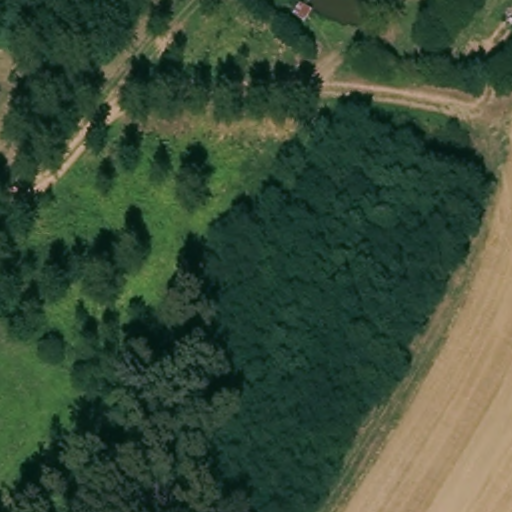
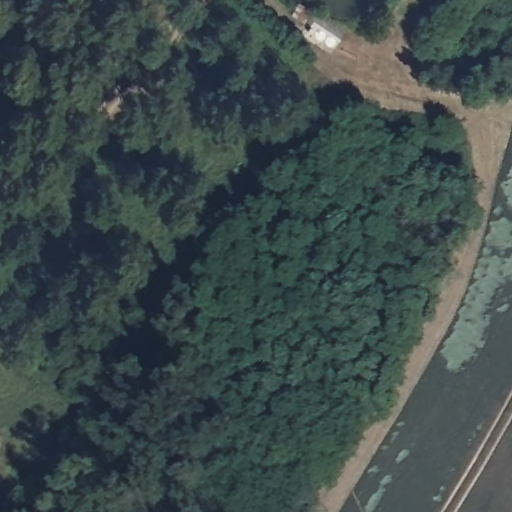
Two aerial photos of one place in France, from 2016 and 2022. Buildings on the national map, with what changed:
[]

